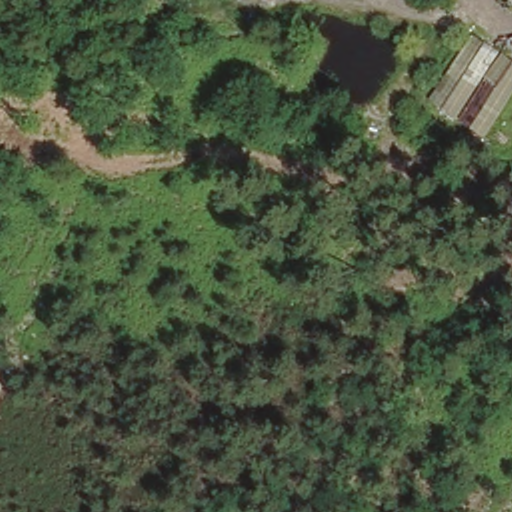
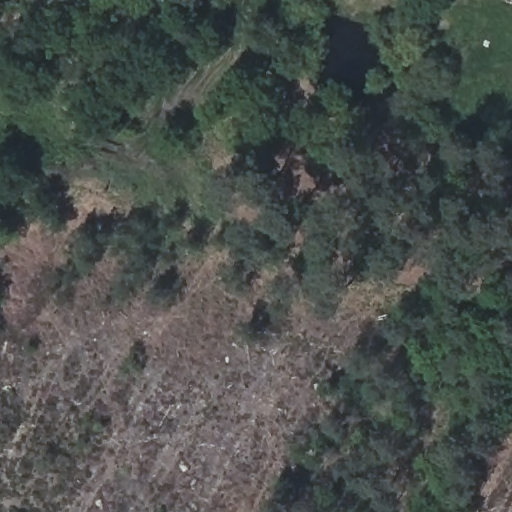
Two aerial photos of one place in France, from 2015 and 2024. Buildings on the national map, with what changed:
demolished [(428,100),(470,31),(512,57),(512,98),(485,139),(428,100)]

